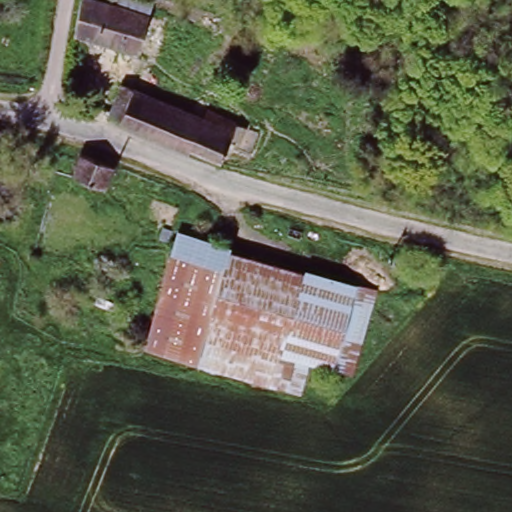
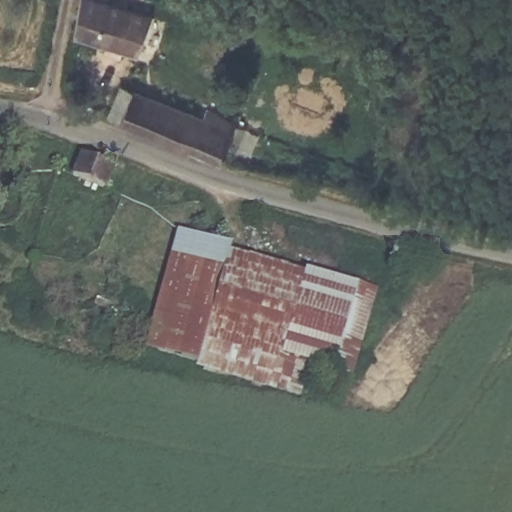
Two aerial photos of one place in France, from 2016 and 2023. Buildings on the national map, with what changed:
unchanged [(117,0),(151,0),(147,12),(136,50),(74,32),(80,0),(108,0),(116,2),(117,0)]
unchanged [(121,83),(204,117),(208,110),(243,124),(235,143),(228,141),(221,157),(109,112),(121,83)]
unchanged [(82,151),(115,163),(106,187),(73,174),(82,151)]
unchanged [(184,229),(231,243),(229,247),(379,287),(356,369),(313,357),(301,388),(198,362),(199,358),(149,345),(184,229)]

